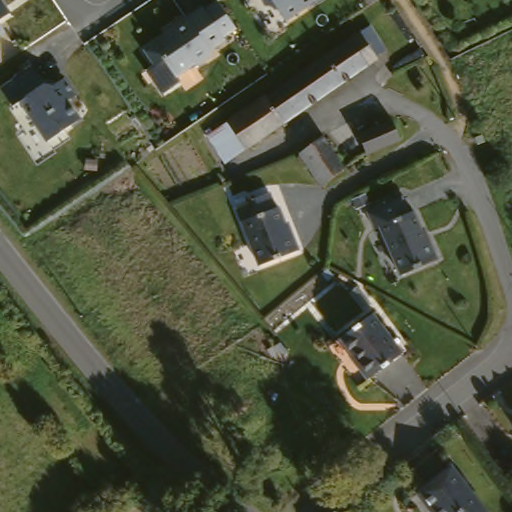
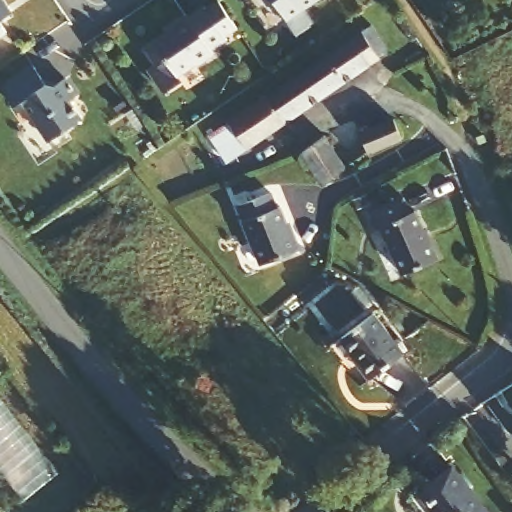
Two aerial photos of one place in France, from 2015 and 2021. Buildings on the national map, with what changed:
unchanged [(319,0),(288,21),(271,0),(319,0)]
unchanged [(0,46),(0,1),(13,35),(0,46)]
unchanged [(225,40),(209,52),(211,56),(180,79),(154,47),(202,9),(225,40)]
unchanged [(214,126),(229,117),(229,116),(250,103),(290,78),(313,62),(365,30),(373,41),(375,44),(387,36),(395,49),(383,55),(386,60),(247,148),(232,155),(214,126)]
unchanged [(65,79),(74,93),(66,101),(80,120),(49,142),(23,105),(16,107),(2,87),(32,67),(50,88),(65,79)]
unchanged [(397,118),(400,125),(403,139),(381,147),(378,149),(368,153),(361,134),(397,118)]
unchanged [(330,132),(348,164),(325,179),(306,147),(330,132)]
unchanged [(277,191),(281,208),(288,206),(293,229),(297,228),(302,246),(262,257),(246,200),(277,191)]
unchanged [(407,195),(415,210),(419,209),(432,235),(435,233),(445,255),(408,272),(385,226),(381,229),(372,212),(383,207),(407,195)]
unchanged [(376,308),(409,351),(373,375),(359,355),(362,351),(344,330),(376,308)]
new [(0,404),(55,475),(25,498),(0,466),(0,404)]
unchanged [(458,468),(492,512),(441,512),(426,493),(458,468)]
new [(0,510),(1,512),(0,512),(0,510)]

